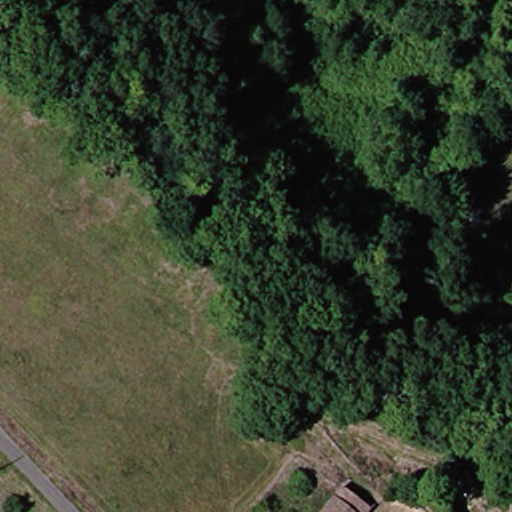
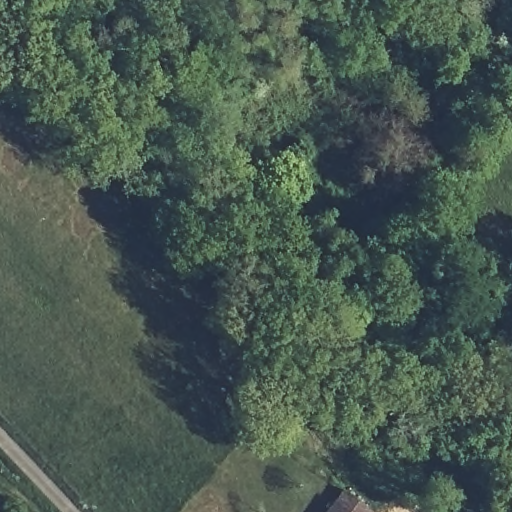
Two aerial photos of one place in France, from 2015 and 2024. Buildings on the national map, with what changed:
unchanged [(348,512),(323,512),(334,499),(348,512)]

